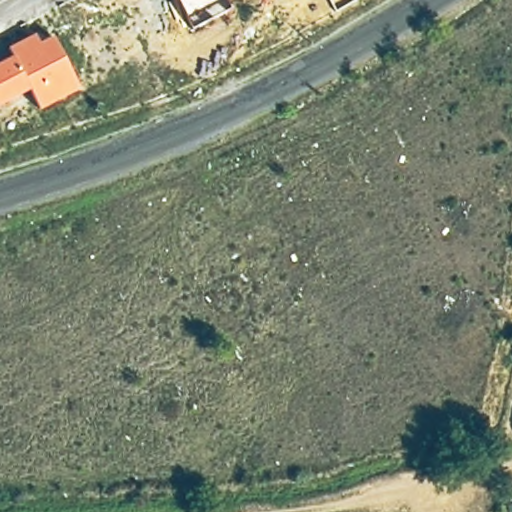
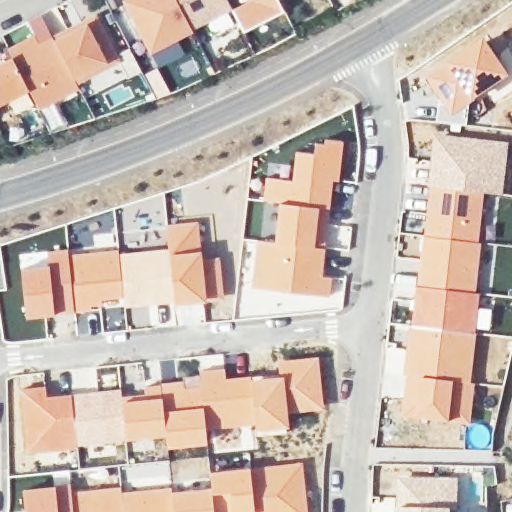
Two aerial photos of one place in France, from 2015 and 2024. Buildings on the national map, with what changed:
new [(149,54),(121,0),(176,0),(191,29),(192,32),(149,54)]
new [(176,0),(228,0),(232,9),(191,29),(176,0)]
new [(282,11),(243,30),(232,9),(250,0),(249,0),(277,0),(282,11)]
new [(77,82),(55,35),(95,14),(120,61),(77,82)]
unchanged [(40,109),(31,90),(0,106),(0,66),(15,59),(8,50),(36,35),(40,42),(55,35),(77,82),(80,88),(40,109)]
new [(512,73),(512,76),(455,118),(425,79),(487,39),(512,73)]
new [(436,133),(511,142),(505,196),(487,194),(430,186),(436,133)]
new [(265,175),(290,178),(294,150),(312,152),(314,139),(343,141),(338,181),(333,180),(329,207),(277,202),(261,200),(265,175)]
new [(430,186),(487,194),(482,243),(424,236),(430,186)]
new [(224,298),(206,301),(203,302),(205,322),(178,326),(175,306),(173,304),(165,245),(162,226),(155,226),(155,220),(147,218),(147,216),(145,217),(143,210),(137,210),(135,201),(163,192),(167,223),(197,220),(202,258),(220,256),(224,298)]
new [(277,202),(329,207),(325,246),(272,241),(277,202)]
new [(91,248),(87,216),(114,208),(116,229),(118,246),(118,252),(121,299),(103,301),(103,308),(75,313),(70,251),(91,248)]
new [(424,236),(482,243),(484,243),(479,292),(416,285),(424,236)]
new [(247,277),(254,239),(272,241),(325,246),(322,274),(332,276),(329,296),(246,286),(247,277)]
new [(165,245),(173,304),(122,308),(121,299),(118,252),(165,245)]
new [(69,248),(70,251),(75,313),(26,318),(18,254),(69,248)]
new [(245,277),(247,277),(246,286),(329,296),(332,276),(345,277),(341,307),(283,314),(238,317),(245,277)]
new [(416,285),(479,292),(483,293),(481,307),(495,309),(492,333),(478,330),(478,334),(411,326),(416,285)]
new [(388,345),(407,348),(411,326),(478,334),(473,383),(471,425),(401,417),(403,376),(384,375),(388,345)]
new [(319,355),(325,409),(288,413),(283,372),(277,373),(275,359),(319,355)]
new [(198,368),(224,365),(226,377),(250,375),(253,425),(206,429),(198,375),(198,368)]
new [(277,373),(283,372),(288,413),(289,427),(255,431),(253,425),(250,375),(277,373)]
new [(198,375),(206,429),(208,441),(166,447),(165,436),(160,383),(198,375)]
new [(145,396),(143,386),(160,383),(165,436),(126,441),(122,398),(145,396)]
new [(45,385),(47,395),(71,392),(77,447),(77,449),(23,454),(17,387),(45,385)]
new [(120,388),(122,398),(126,441),(77,447),(71,392),(120,388)]
new [(160,486),(159,479),(127,482),(125,467),(168,460),(171,485),(171,490),(210,486),(214,512),(74,512),(72,491),(120,486),(121,490),(160,486)]
new [(308,512),(254,512),(250,467),(302,461),(308,512)]
new [(254,512),(214,512),(210,486),(209,471),(250,467),(254,512)]
new [(52,471),(69,470),(70,482),(72,491),(74,512),(24,512),(21,487),(54,484),(52,471)]
new [(398,476),(460,478),(454,508),(397,507),(398,476)]
new [(454,508),(454,512),(397,512),(397,507),(454,508)]

